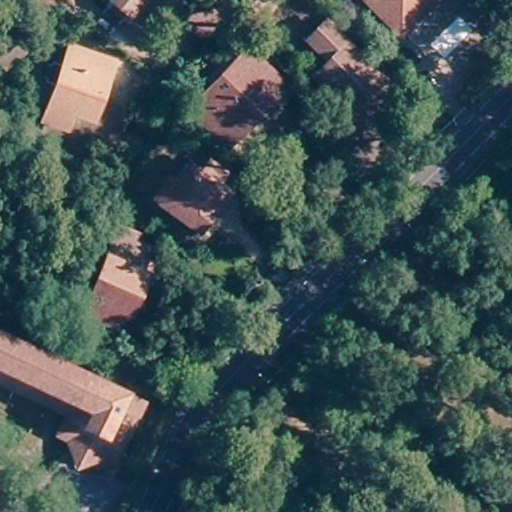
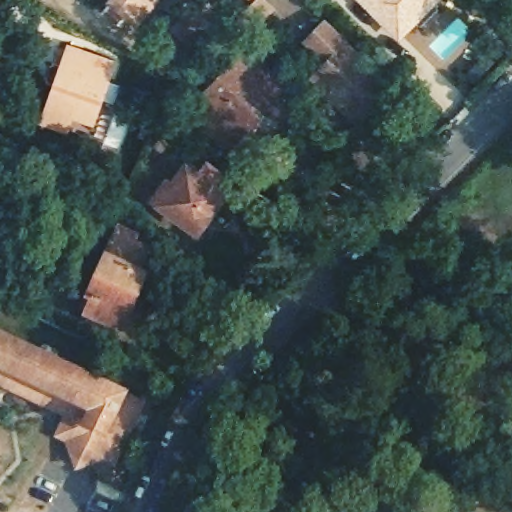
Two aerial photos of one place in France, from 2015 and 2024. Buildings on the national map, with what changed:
unchanged [(122,20),(118,24),(101,10),(109,0),(153,0),(132,27),(122,20)]
unchanged [(252,5),(257,0),(270,12),(249,35),(236,23),(252,5)]
unchanged [(246,0),(254,0),(251,4),(246,0)]
unchanged [(442,0),(401,42),(358,0),(442,0)]
unchanged [(191,53),(172,33),(201,3),(220,22),(191,53)]
unchanged [(395,95),(363,128),(315,81),(330,66),(308,43),(326,25),(395,95)]
unchanged [(92,123),(72,115),(67,131),(45,124),(71,50),(113,65),(92,123)]
unchanged [(277,99),(230,150),(191,113),(238,63),(277,99)]
unchanged [(223,186),(216,196),(227,204),(199,244),(154,212),(169,192),(174,196),(187,177),(201,186),(209,175),(223,186)]
unchanged [(131,242),(147,249),(138,269),(145,272),(136,293),(128,290),(114,323),(82,310),(118,226),(135,233),(131,242)]
unchanged [(120,398),(147,407),(106,469),(97,461),(70,478),(64,445),(47,437),(60,407),(0,379),(0,340),(120,398)]

